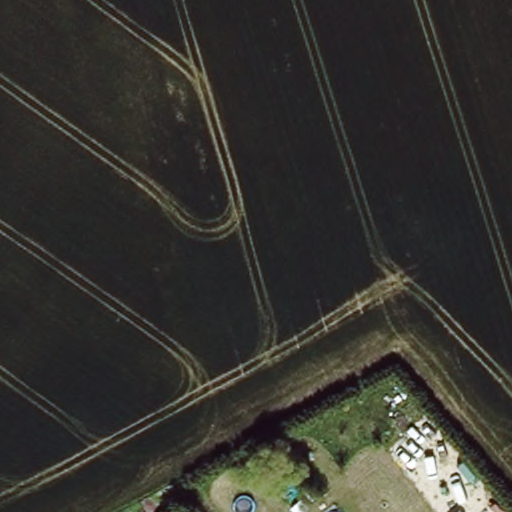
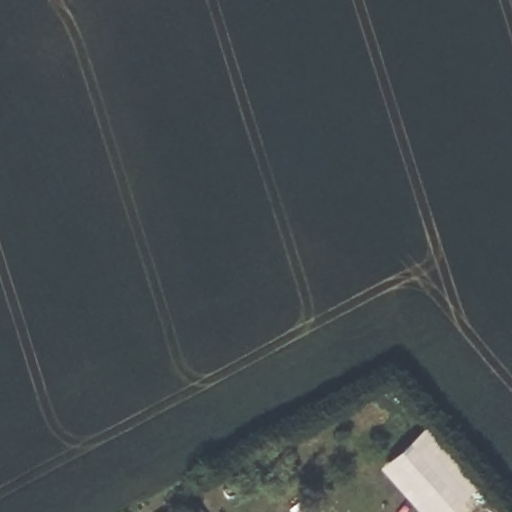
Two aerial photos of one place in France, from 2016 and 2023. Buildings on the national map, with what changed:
new [(426,512),(383,464),(429,423),(482,483),(450,512),(426,512)]

